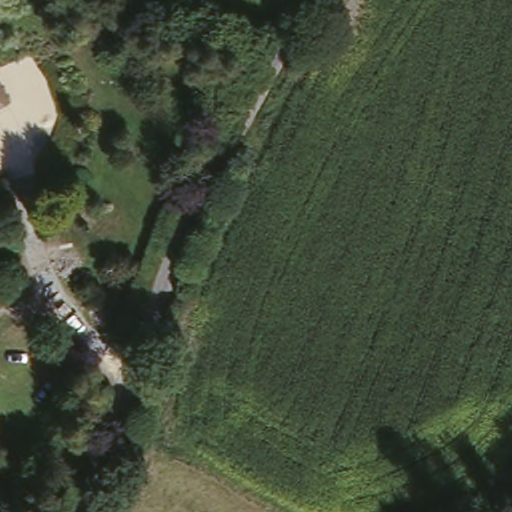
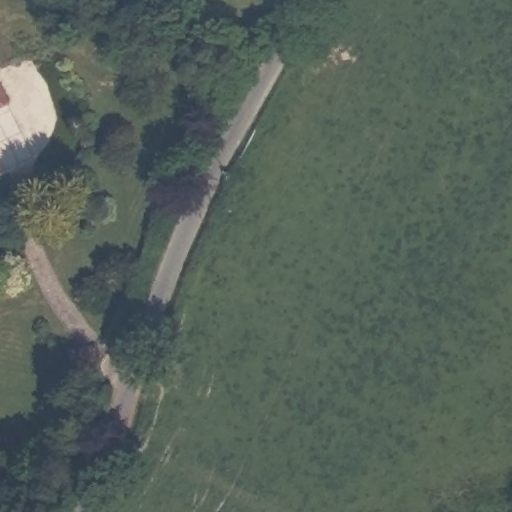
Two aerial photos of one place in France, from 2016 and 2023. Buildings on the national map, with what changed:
unchanged [(0,105),(0,82),(8,100),(0,105)]

